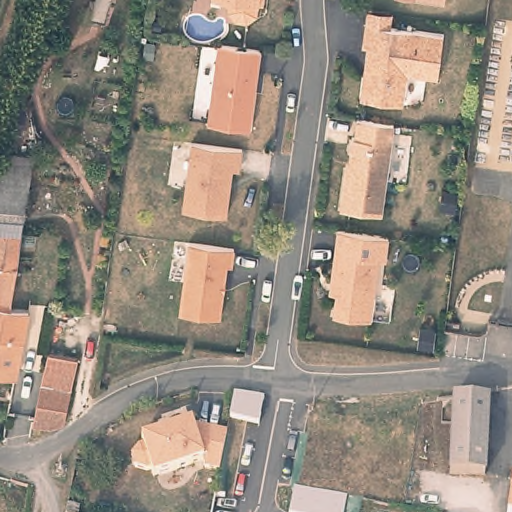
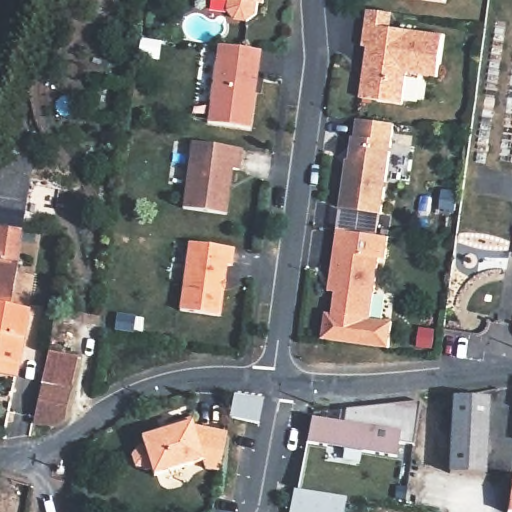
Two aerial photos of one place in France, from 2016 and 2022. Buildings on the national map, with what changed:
unchanged [(256,14),(247,21),(235,20),(227,11),(228,0),(258,0),(256,14)]
unchanged [(444,1),(434,0),(444,0),(444,1)]
unchanged [(362,46),(365,24),(366,9),(391,13),(390,27),(442,35),(437,77),(405,73),(402,104),(360,98),(367,46),(362,46)]
unchanged [(260,50),(250,128),(207,122),(218,44),(260,50)]
unchanged [(392,125),(380,215),(340,210),(345,169),(348,169),(351,138),(354,138),(356,120),(392,125)]
unchanged [(242,148),(239,169),(232,169),(226,214),(182,208),(191,141),(242,148)]
unchanged [(0,164),(0,151),(2,151),(0,164)]
unchanged [(31,157),(29,177),(20,233),(14,267),(0,265),(0,164),(2,151),(31,157)]
unchanged [(386,239),(384,261),(379,261),(369,321),(332,316),(335,285),(329,285),(335,233),(386,239)]
unchanged [(234,248),(232,265),(227,264),(220,315),(180,310),(188,241),(234,248)]
unchanged [(7,308),(0,307),(0,265),(14,267),(7,308)]
unchanged [(29,313),(18,370),(17,370),(15,381),(0,378),(0,307),(7,308),(29,313)]
unchanged [(31,430),(34,409),(45,356),(73,362),(61,425),(49,431),(31,430)]
unchanged [(234,393),(263,398),(258,422),(229,417),(234,393)]
unchanged [(489,398),(485,474),(450,472),(453,397),(489,398)]
new [(416,398),(416,401),(410,443),(394,440),(396,429),(383,428),(382,403),(416,398)]
new [(307,416),(340,421),(342,408),(382,403),(383,428),(396,429),(394,440),(392,454),(303,441),(307,416)]
unchanged [(230,436),(222,470),(208,467),(206,460),(156,473),(154,466),(149,467),(138,464),(135,453),(143,444),(147,442),(145,435),(176,426),(175,422),(195,417),(197,424),(231,431),(230,436)]
unchanged [(343,512),(288,512),(294,486),(346,496),(343,512)]
unchanged [(509,512),(512,490),(512,512),(509,512)]

